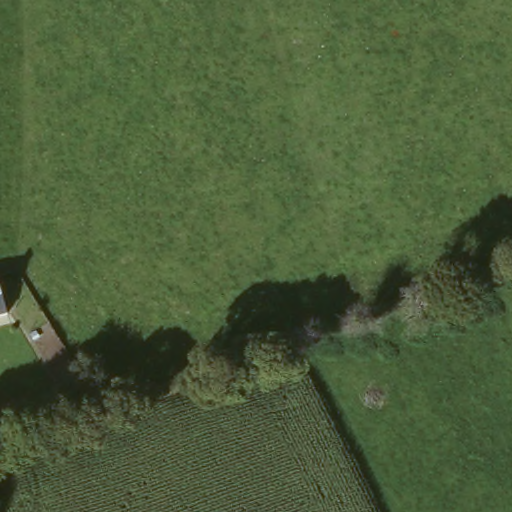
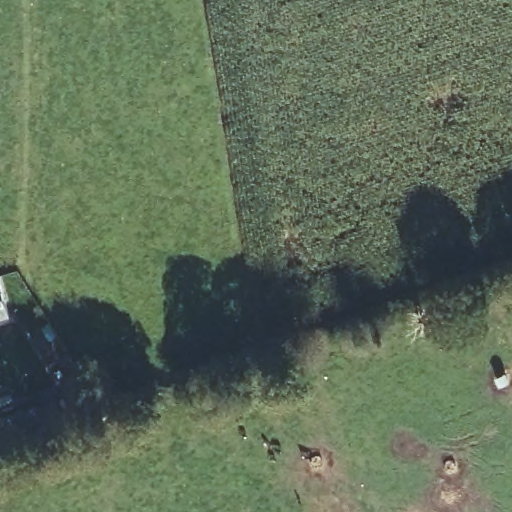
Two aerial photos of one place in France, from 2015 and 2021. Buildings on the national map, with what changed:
unchanged [(44,440),(7,453),(0,435),(0,432),(36,419),(44,440)]

